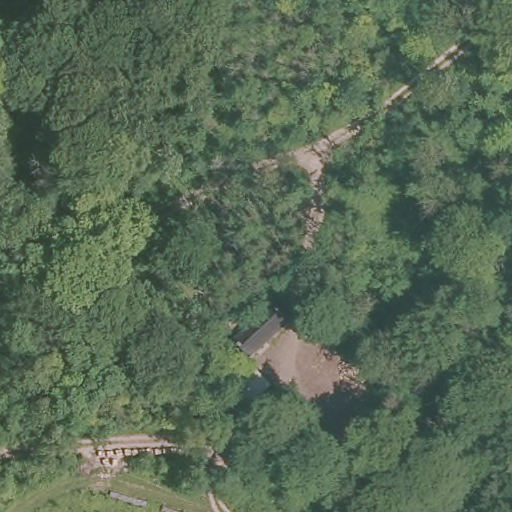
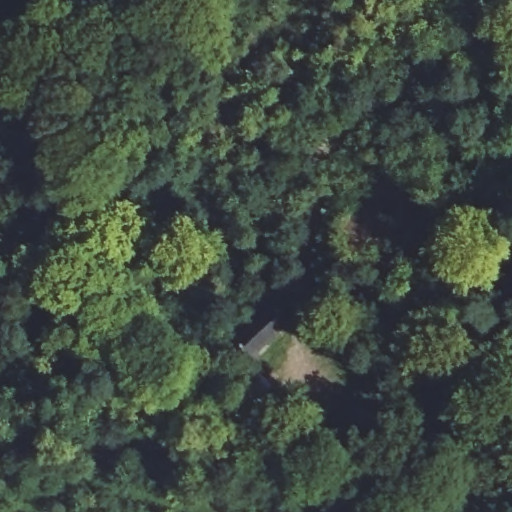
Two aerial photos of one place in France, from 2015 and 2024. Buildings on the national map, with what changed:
unchanged [(273,302),(293,328),(252,365),(229,341),(273,302)]

